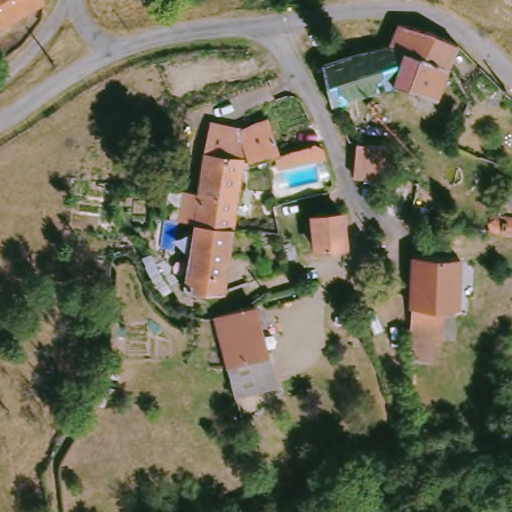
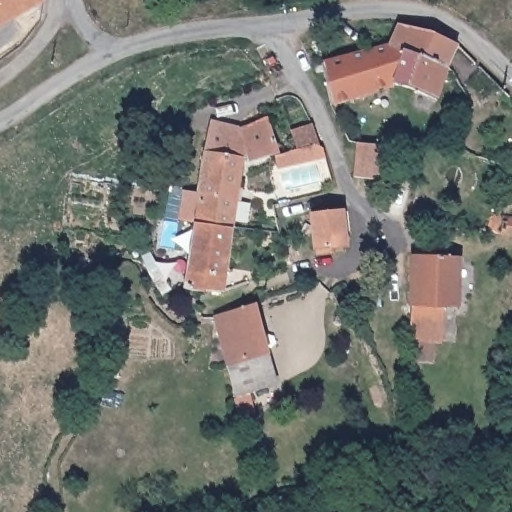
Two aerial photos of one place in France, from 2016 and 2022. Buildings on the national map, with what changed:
unchanged [(45,6),(0,30),(0,0),(43,0),(45,6)]
unchanged [(392,36),(397,24),(429,32),(457,45),(446,68),(387,46),(392,36)]
unchanged [(435,100),(392,85),(330,105),(323,71),(321,65),(387,46),(446,68),(435,100)]
unchanged [(240,130),(266,119),(275,152),(250,159),(241,160),(205,154),(211,124),(240,130)]
unchanged [(355,143),(392,147),(390,180),(353,175),(355,143)]
unchanged [(311,146),(315,159),(300,162),(296,150),(311,146)]
unchanged [(188,292),(194,223),(178,220),(183,191),(198,193),(205,154),(241,160),(231,228),(223,292),(193,291),(188,292)]
unchanged [(340,212),(344,246),(315,249),(312,215),(340,212)]
unchanged [(493,232),(489,229),(487,226),(488,221),(491,217),(495,216),(499,216),(512,218),(512,236),(493,232)]
unchanged [(273,247),(258,247),(258,235),(275,236),(273,247)]
unchanged [(411,306),(410,306),(412,256),(458,257),(457,307),(440,307),(438,341),(410,338),(411,306)]
unchanged [(275,383),(237,396),(215,317),(250,306),(253,305),(275,383)]

